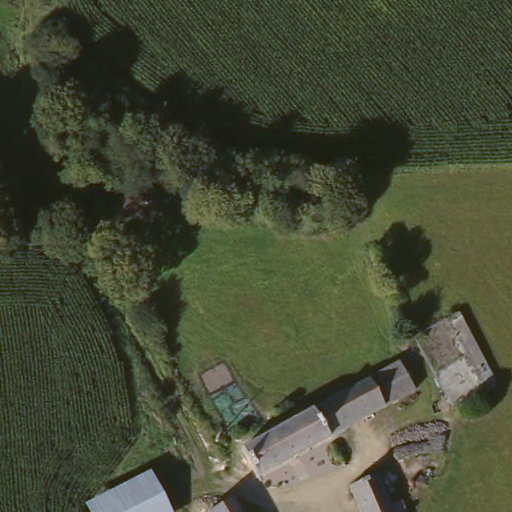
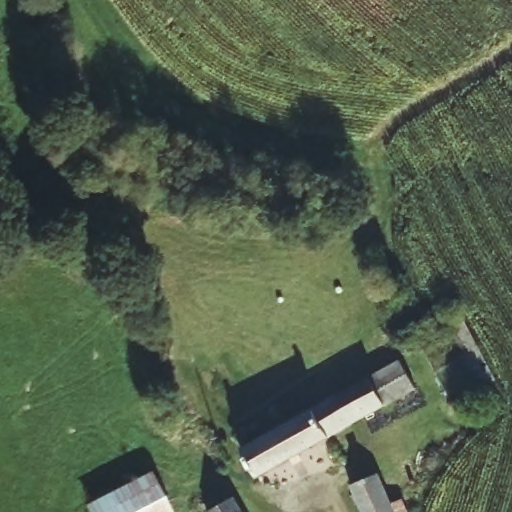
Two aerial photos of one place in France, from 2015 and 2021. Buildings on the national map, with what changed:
unchanged [(496,383),(481,391),(447,320),(458,312),(496,383)]
unchanged [(334,394),(386,362),(397,381),(401,386),(344,421),(279,463),(274,457),(265,465),(258,450),(267,445),(263,438),(334,394)]
unchanged [(171,512),(87,512),(81,501),(148,466),(171,512)]
unchanged [(349,488),(360,481),(374,472),(396,510),(398,512),(363,512),(349,488)]
unchanged [(246,512),(210,512),(209,511),(236,495),(246,512)]

